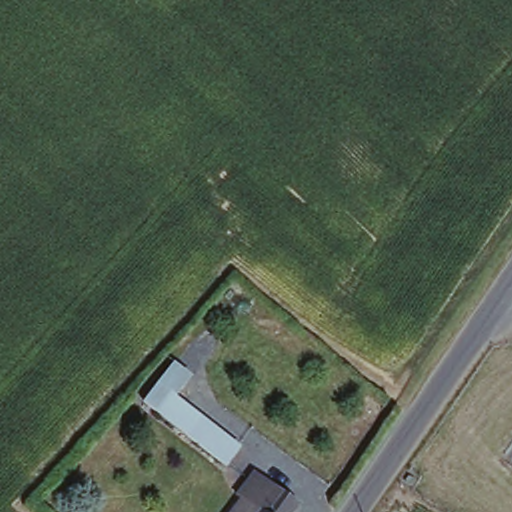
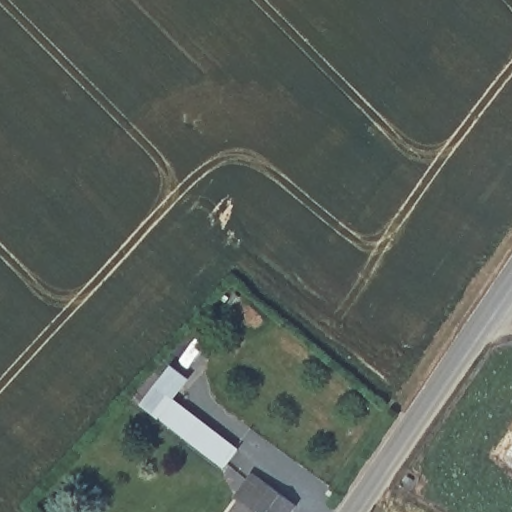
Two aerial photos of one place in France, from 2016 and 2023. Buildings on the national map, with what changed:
unchanged [(152,413),(171,391),(245,447),(225,470),(152,413)]
unchanged [(246,487),(257,472),(265,477),(305,505),(303,509),(300,512),(242,512),(247,504),(239,497),(246,487)]

